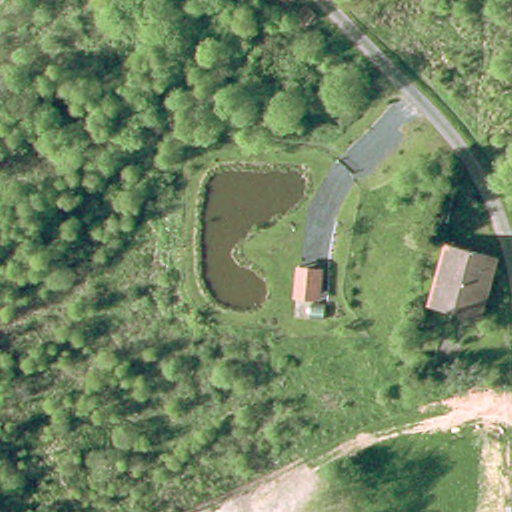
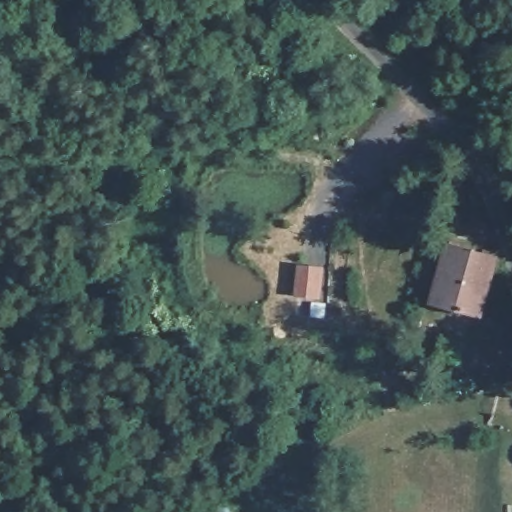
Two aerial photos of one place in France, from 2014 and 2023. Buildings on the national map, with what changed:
unchanged [(490,251),(482,317),(437,311),(445,244),(490,251)]
unchanged [(324,266),(320,298),(294,294),(297,263),(324,266)]

